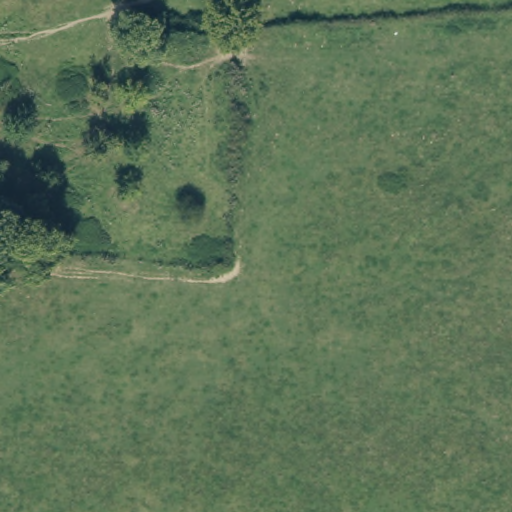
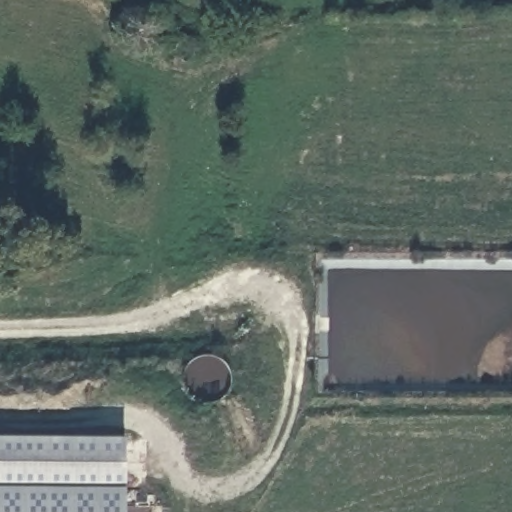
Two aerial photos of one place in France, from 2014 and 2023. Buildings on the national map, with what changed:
new [(0,512),(0,438),(125,439),(125,512),(0,512)]

